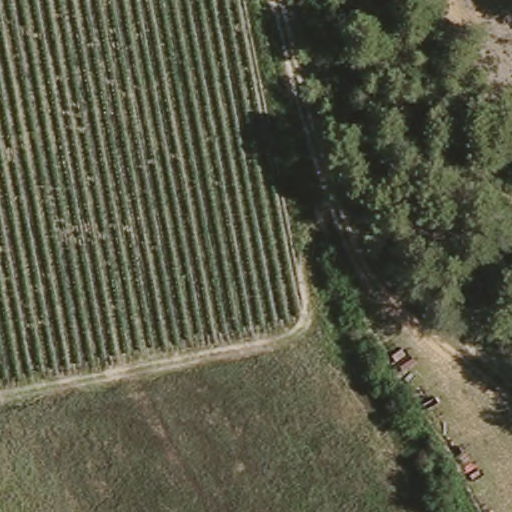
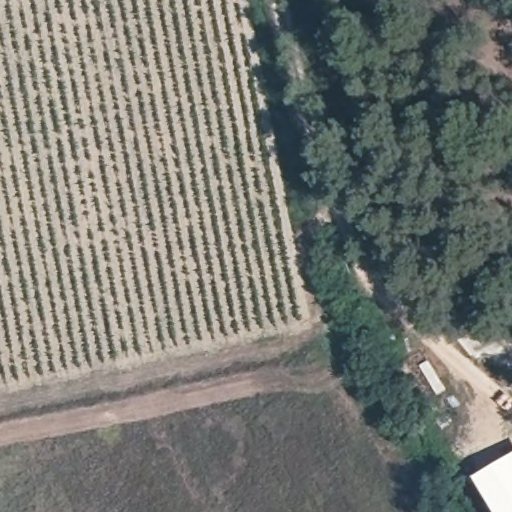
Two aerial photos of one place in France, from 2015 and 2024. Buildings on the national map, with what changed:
new [(512,454),(512,512),(487,512),(469,481),(512,454)]

